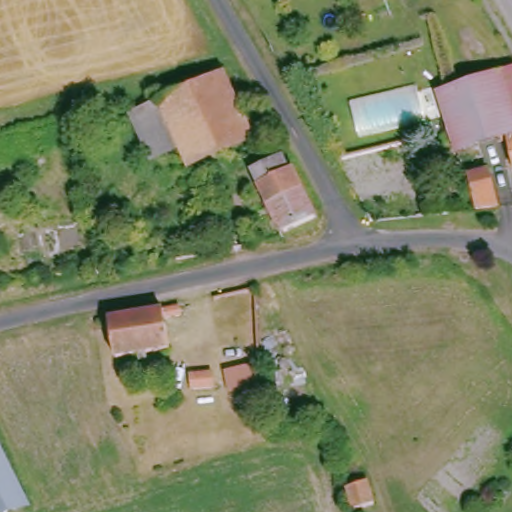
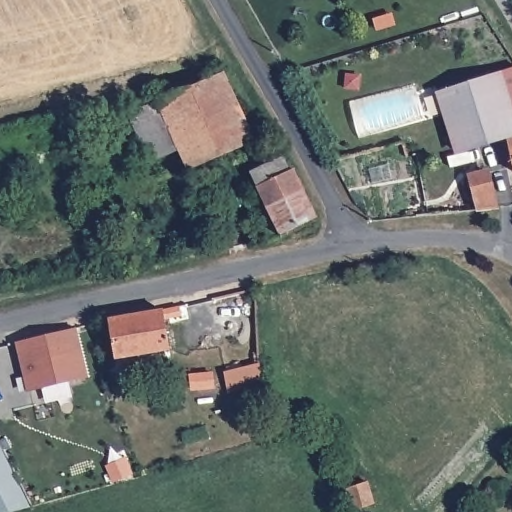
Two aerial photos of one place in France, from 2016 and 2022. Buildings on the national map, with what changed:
unchanged [(455,152),(435,94),(512,68),(512,135),(455,152)]
unchanged [(218,80),(235,124),(246,119),(253,137),(183,165),(175,147),(143,160),(140,148),(170,137),(157,103),(218,80)]
unchanged [(157,103),(170,137),(140,148),(126,116),(157,103)]
unchanged [(512,171),(505,142),(512,140),(512,171)]
unchanged [(301,179),(318,218),(276,236),(246,172),(266,163),(263,154),(278,146),(301,179)]
unchanged [(467,171),(489,167),(495,205),(473,207),(467,171)]
unchanged [(110,316),(179,301),(181,311),(166,314),(170,345),(115,353),(110,316)]
new [(71,382),(74,398),(46,404),(43,388),(26,391),(15,342),(78,328),(88,376),(71,382)]
unchanged [(227,365),(260,361),(261,381),(235,386),(229,386),(227,365)]
unchanged [(193,369),(215,368),(217,380),(194,381),(193,369)]
new [(124,453),(131,468),(113,476),(107,461),(124,453)]
unchanged [(4,512),(0,504),(0,460),(24,508),(10,512),(4,512)]
unchanged [(375,500),(355,507),(348,486),(367,479),(375,500)]

